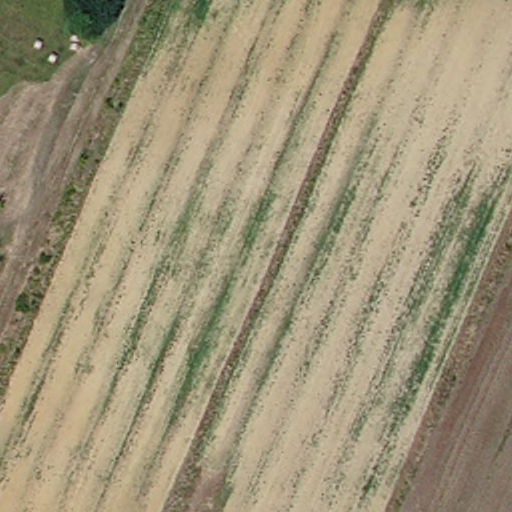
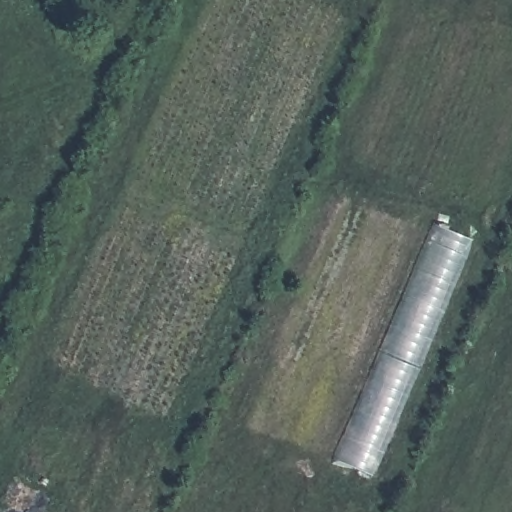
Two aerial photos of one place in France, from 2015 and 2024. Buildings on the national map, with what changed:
new [(372,477),(333,459),(435,224),(473,241),(372,477)]

